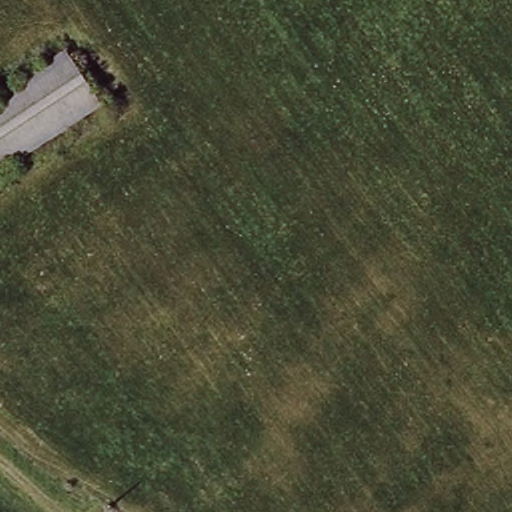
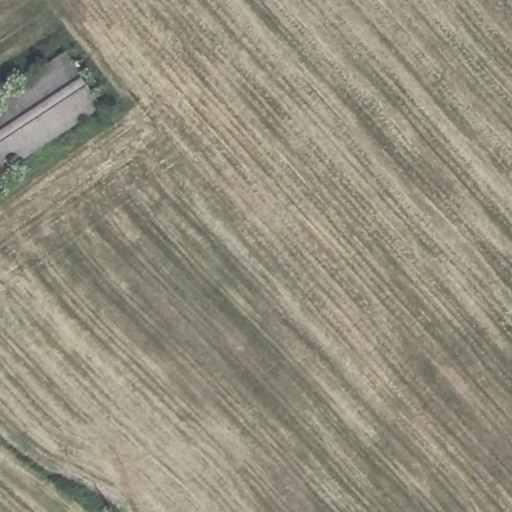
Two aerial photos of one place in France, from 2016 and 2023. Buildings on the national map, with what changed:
unchanged [(103,108),(0,175),(0,96),(66,53),(103,108)]

